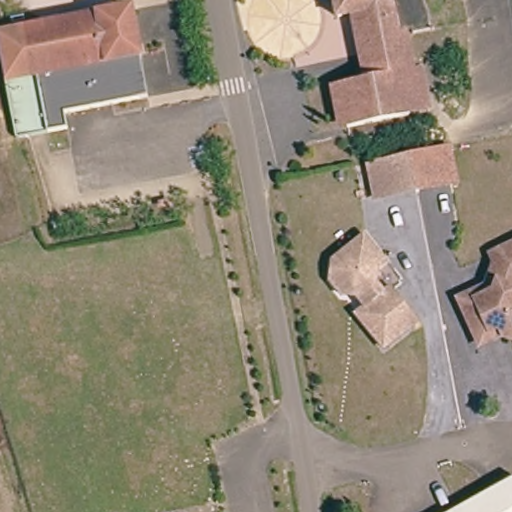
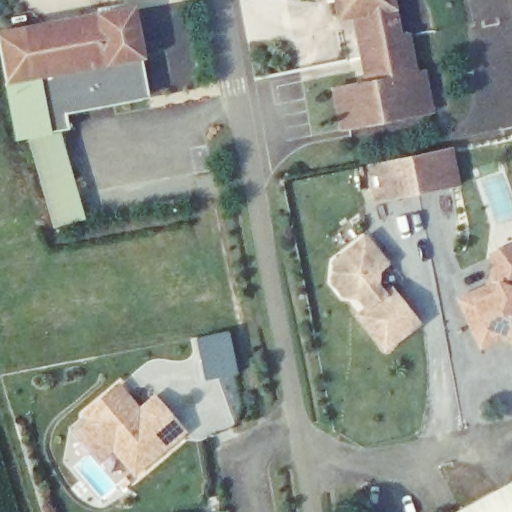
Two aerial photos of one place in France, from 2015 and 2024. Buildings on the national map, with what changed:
unchanged [(359,12),(335,16),(331,0),(389,0),(391,6),(359,12)]
unchanged [(356,79),(353,63),(368,58),(359,12),(391,6),(396,31),(404,29),(412,66),(414,75),(399,79),(406,116),(339,127),(331,85),(356,79)]
unchanged [(70,120),(71,125),(73,135),(21,146),(0,51),(0,42),(11,39),(99,20),(98,14),(131,7),(132,13),(143,59),(135,61),(141,87),(144,103),(70,120)]
unchanged [(422,63),(432,112),(406,116),(399,79),(414,75),(412,66),(422,63)]
unchanged [(454,151),(462,189),(375,208),(368,168),(454,151)]
unchanged [(416,314),(377,350),(350,315),(365,303),(341,291),(328,273),(332,256),(361,230),(381,253),(371,264),(369,274),(382,289),(391,282),(416,314)]
unchanged [(471,317),(461,296),(484,287),(501,242),(512,237),(512,339),(487,349),(471,317)]
new [(236,372),(204,379),(195,339),(227,332),(236,372)]
new [(187,430),(135,477),(112,453),(101,462),(76,430),(87,421),(80,412),(118,381),(139,406),(155,395),(187,430)]
unchanged [(463,507),(512,482),(512,512),(454,512),(463,507)]

